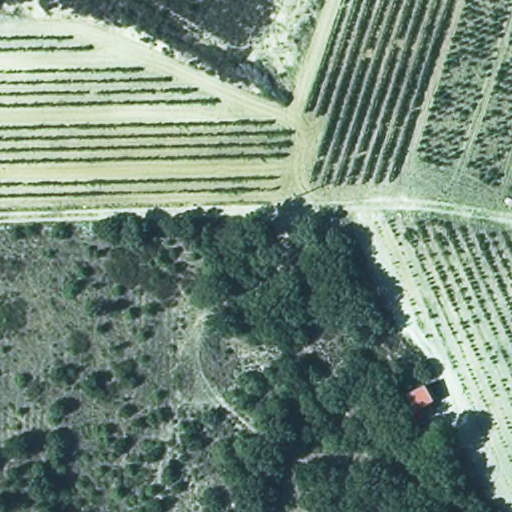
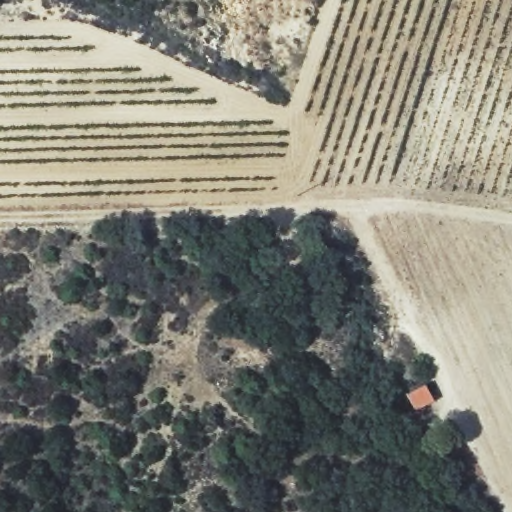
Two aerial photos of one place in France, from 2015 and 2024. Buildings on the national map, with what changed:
unchanged [(416,410),(404,393),(423,382),(426,380),(435,398),(431,400),(416,410)]

